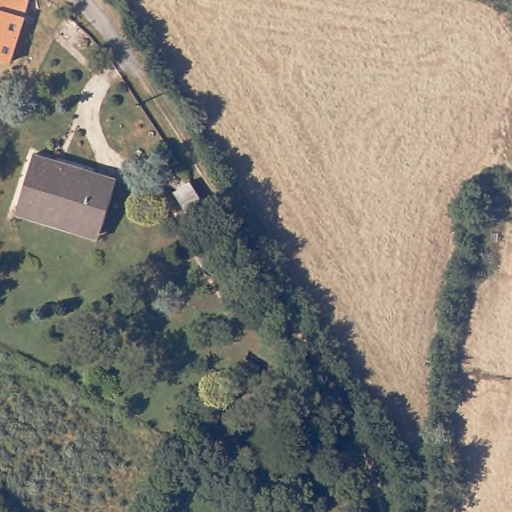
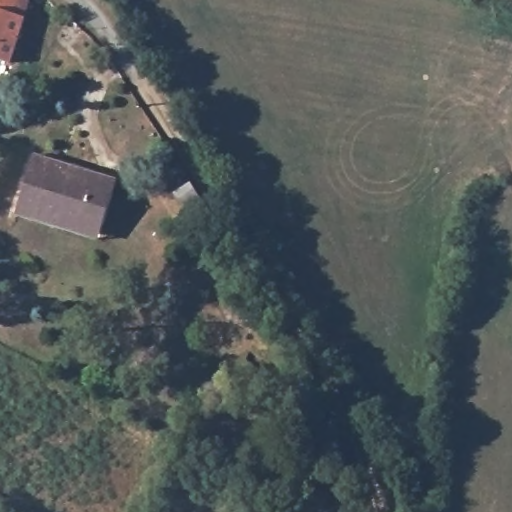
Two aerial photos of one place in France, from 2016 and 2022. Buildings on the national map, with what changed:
unchanged [(15,62),(0,58),(0,0),(33,0),(27,24),(15,62)]
unchanged [(35,156),(116,181),(100,235),(19,209),(35,156)]

